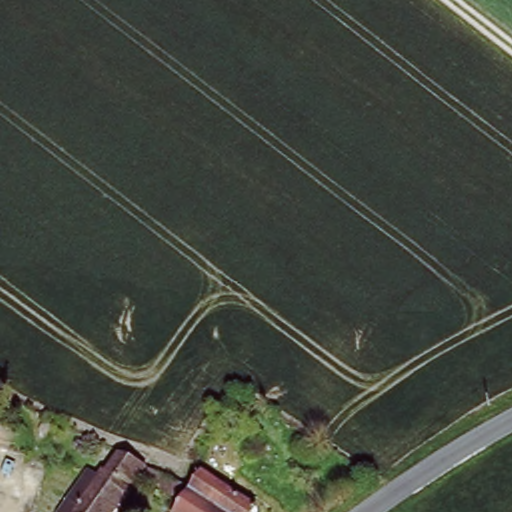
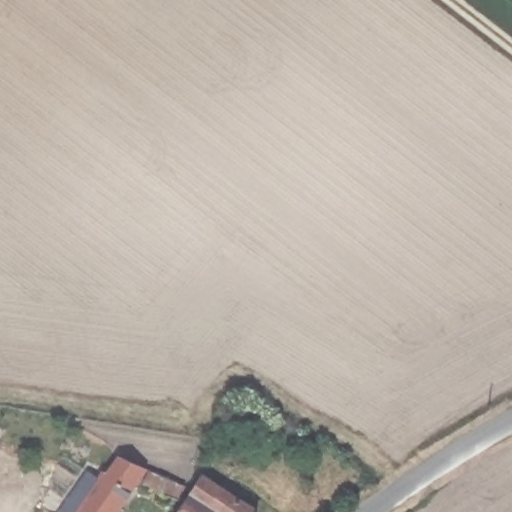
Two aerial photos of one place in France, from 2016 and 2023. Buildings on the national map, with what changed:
unchanged [(0,435),(0,433),(1,433),(0,435)]
unchanged [(118,512),(62,512),(87,475),(95,481),(117,454),(144,474),(118,512)]
unchanged [(173,502),(147,488),(153,476),(180,490),(173,502)]
unchanged [(202,476),(253,512),(177,512),(202,476)]

